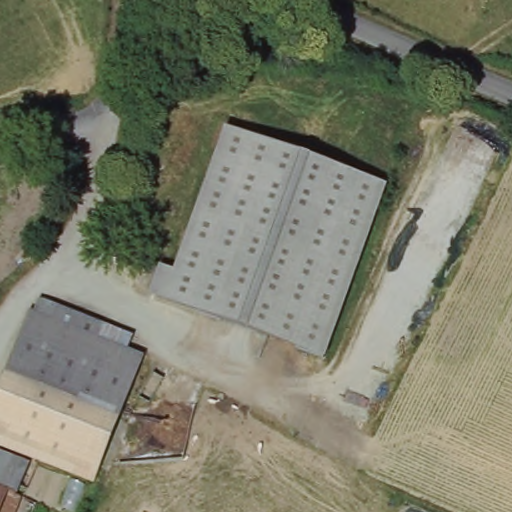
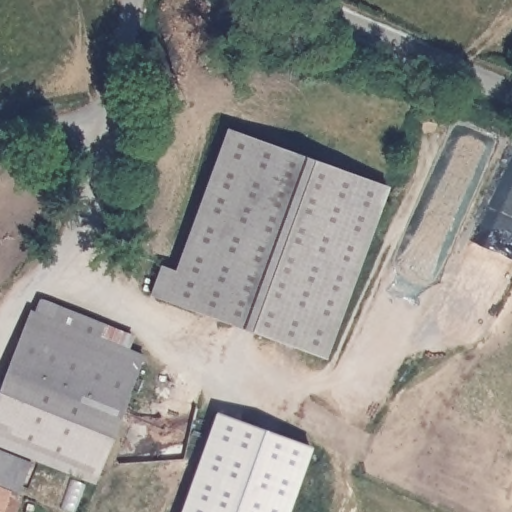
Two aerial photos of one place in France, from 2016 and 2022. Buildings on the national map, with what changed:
unchanged [(160,265),(174,269),(225,128),(387,187),(326,359),(165,301),(149,296),(160,265)]
unchanged [(28,310),(34,312),(40,299),(101,323),(98,337),(138,353),(124,393),(82,376),(15,350),(28,310)]
unchanged [(124,393),(119,408),(90,483),(28,457),(0,446),(0,386),(11,360),(15,350),(82,376),(124,393)]
new [(216,412),(312,448),(288,512),(179,512),(216,412)]
unchanged [(15,497),(19,498),(12,512),(0,512),(0,453),(26,463),(15,497)]

